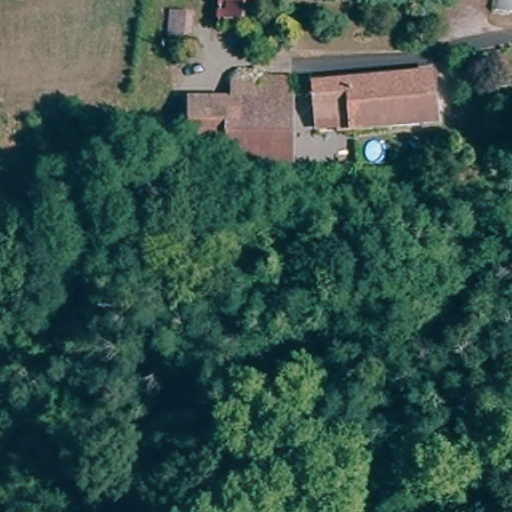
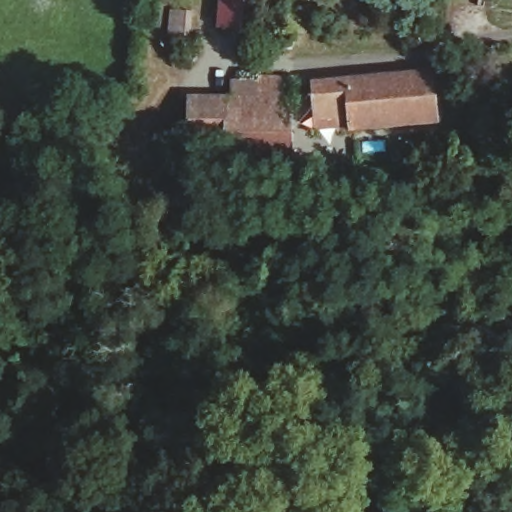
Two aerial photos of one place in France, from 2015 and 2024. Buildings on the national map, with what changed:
unchanged [(264,0),(264,29),(223,28),(223,0),(264,0)]
unchanged [(320,116),(317,81),(438,69),(442,119),(358,127),(358,126),(345,128),(321,130),(320,116)]
unchanged [(297,164),(233,164),(234,151),(233,95),(264,95),(264,74),(297,74),(297,164)]
unchanged [(195,151),(194,95),(233,95),(234,151),(195,151)]

